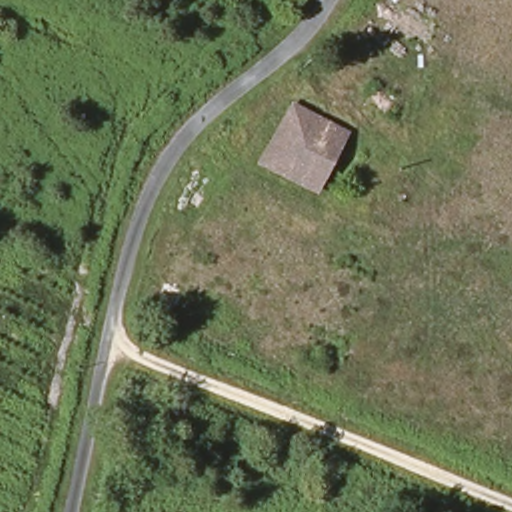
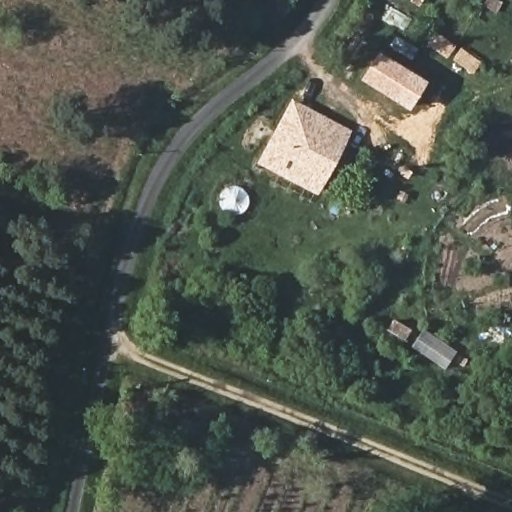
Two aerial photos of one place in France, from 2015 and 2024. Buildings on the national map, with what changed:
new [(360,81),(378,52),(427,82),(408,109),(360,81)]
demolished [(374,84),(387,60),(425,79),(412,104),(374,84)]
unchanged [(275,173),(261,167),(292,111),(348,138),(320,192),(275,173)]

